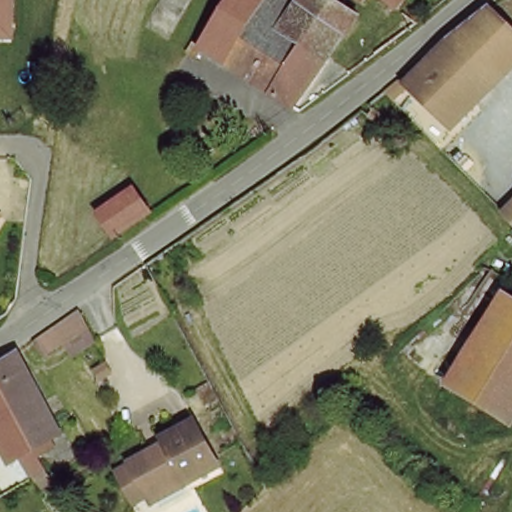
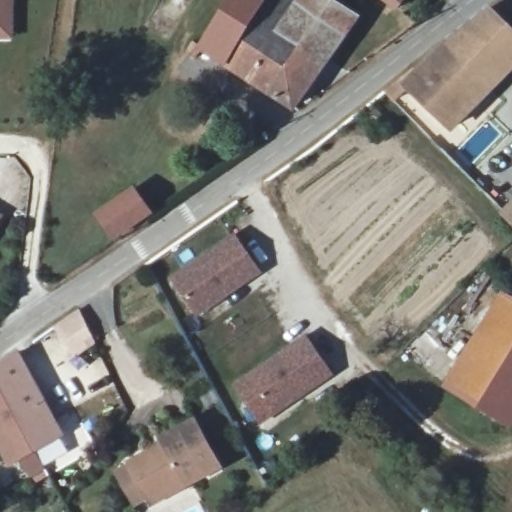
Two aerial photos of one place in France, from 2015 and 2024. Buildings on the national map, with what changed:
unchanged [(0,39),(0,0),(15,0),(15,39),(0,39)]
unchanged [(304,0),(326,0),(358,19),(293,112),(200,51),(237,0),(285,0),(299,9),(304,0)]
unchanged [(362,0),(364,0),(364,1),(362,0)]
unchanged [(389,0),(403,0),(397,5),(389,0)]
unchanged [(512,29),(512,71),(492,91),(452,131),(404,86),(441,44),(444,41),(450,36),(489,7),(512,29)]
unchanged [(133,190),(153,217),(114,242),(96,218),(133,190)]
unchanged [(512,210),(512,220),(507,215),(512,210)]
unchanged [(0,217),(2,218),(0,221),(0,217)]
new [(235,231),(262,272),(196,317),(169,278),(235,231)]
unchanged [(511,298),(512,298),(512,428),(466,398),(450,388),(511,298)]
unchanged [(79,363),(65,348),(45,359),(35,344),(75,315),(79,312),(99,350),(79,363)]
new [(306,335),(335,373),(261,426),(234,384),(306,335)]
unchanged [(0,369),(19,355),(67,439),(36,457),(0,391),(0,369)]
unchanged [(32,479),(24,462),(12,469),(0,449),(0,391),(36,457),(43,471),(32,479)]
unchanged [(148,502),(130,467),(163,449),(160,443),(193,424),(218,472),(189,489),(153,509),(148,502)]

